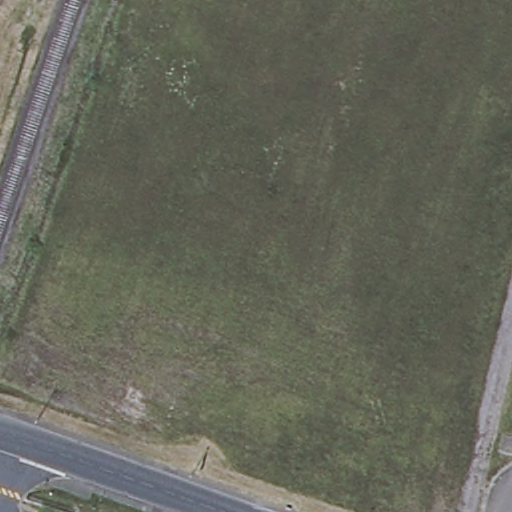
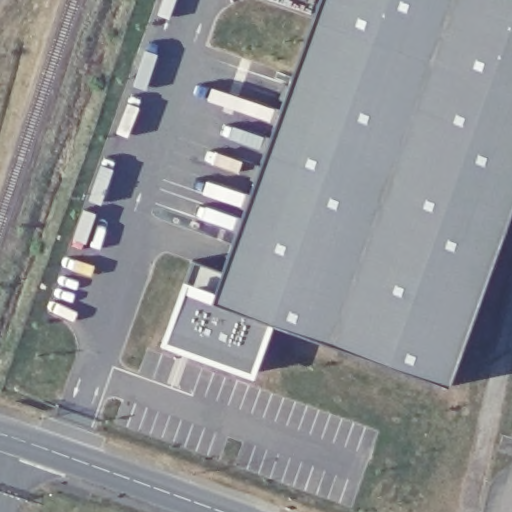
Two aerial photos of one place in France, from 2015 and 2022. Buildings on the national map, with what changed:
new [(326,0),(512,0),(512,217),(450,389),(273,328),(254,382),(165,346),(186,292),(213,305),(326,0)]

